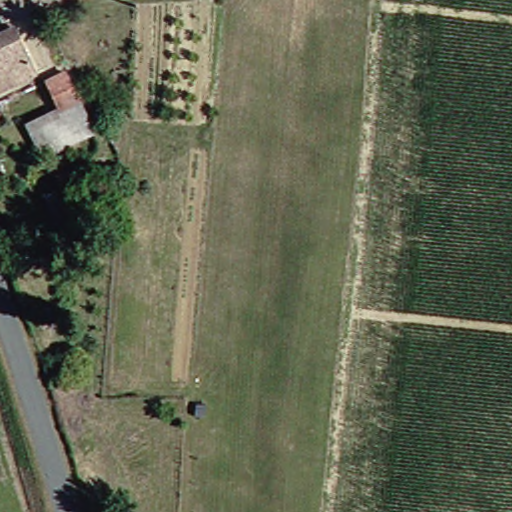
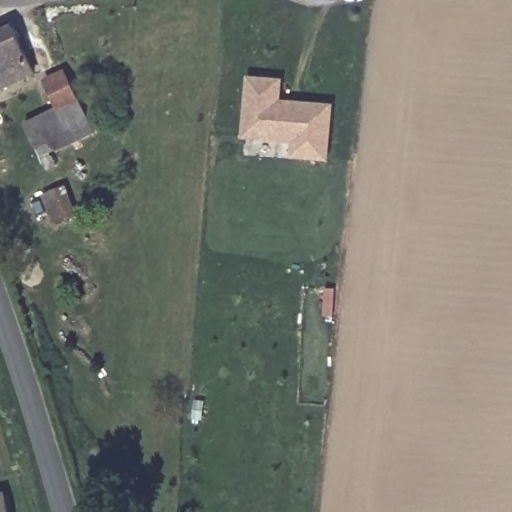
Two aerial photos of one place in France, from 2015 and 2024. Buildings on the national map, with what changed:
unchanged [(14,17),(33,71),(0,83),(0,21),(14,17)]
unchanged [(21,118),(59,102),(47,76),(67,68),(78,95),(93,131),(36,153),(21,118)]
new [(327,162),(242,156),(249,78),(279,81),(278,101),(330,107),(327,162)]
unchanged [(23,191),(40,186),(49,183),(58,216),(50,218),(33,223),(23,191)]
new [(4,493),(9,512),(0,512),(0,494),(4,493)]

